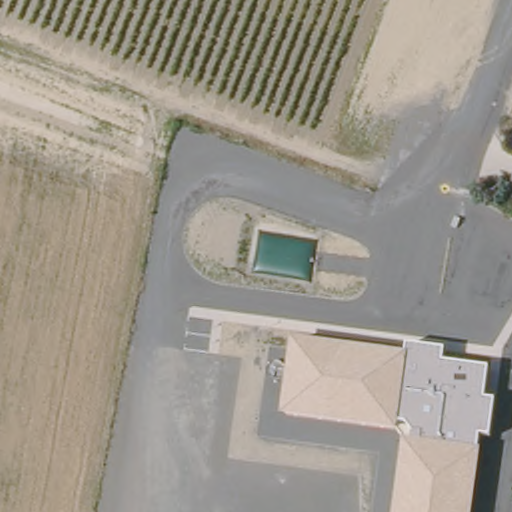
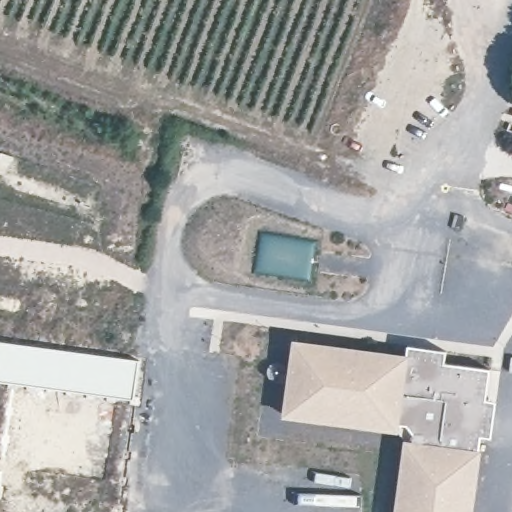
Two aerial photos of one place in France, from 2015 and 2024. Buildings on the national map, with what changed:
demolished [(505,124),(512,107),(512,126),(505,124)]
new [(133,400),(0,381),(0,341),(139,360),(133,400)]
unchanged [(397,430),(284,415),(293,341),(406,355),(408,347),(447,352),(445,364),(490,371),(485,401),(497,403),(492,438),(480,437),(479,452),(482,452),(474,512),(396,512),(405,440),(397,430)]

